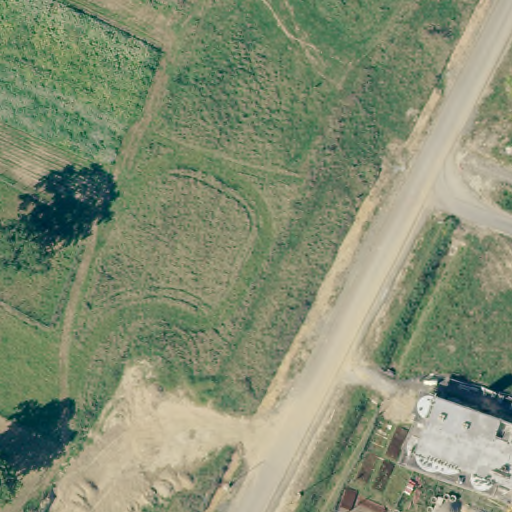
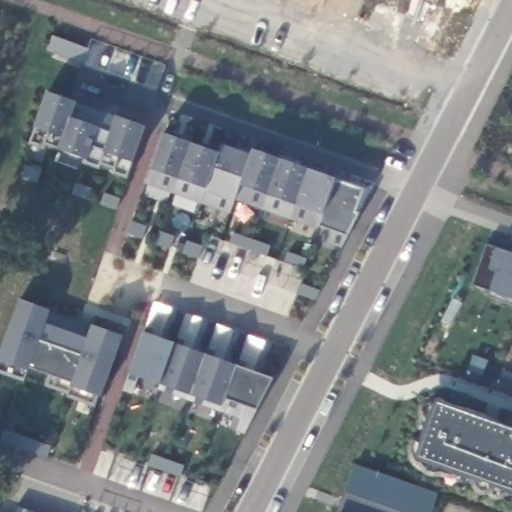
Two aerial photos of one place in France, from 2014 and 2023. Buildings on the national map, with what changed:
new [(52,35),(86,47),(83,57),(81,62),(47,50),(52,35)]
new [(35,128),(49,93),(145,129),(132,163),(125,178),(112,172),(115,168),(101,164),(99,167),(85,160),(57,149),(45,143),(42,148),(30,143),(35,128)]
new [(151,169),(164,134),(220,154),(221,144),(250,156),(252,150),(336,180),(363,190),(355,212),(358,214),(346,236),(341,248),(328,243),(333,232),(318,226),(317,230),(235,200),(230,214),(145,185),(151,169)]
new [(230,234),(268,247),(265,257),(227,244),(230,234)]
new [(186,242),(201,248),(197,260),(182,255),(186,242)]
new [(286,254),(305,260),(301,270),(282,264),(286,254)]
new [(299,285),(318,292),(313,301),(295,295),(299,285)]
new [(19,300),(49,311),(48,313),(92,329),(94,325),(121,336),(100,397),(96,395),(94,406),(66,397),(68,393),(45,386),(49,375),(28,368),(27,371),(24,381),(0,374),(0,356),(19,300)]
new [(274,379),(257,410),(243,433),(236,431),(241,418),(218,411),(221,406),(160,386),(138,377),(132,395),(122,391),(129,372),(144,332),(274,379)]
new [(421,412),(423,407),(426,403),(431,402),(436,403),(437,401),(512,427),(512,492),(508,491),(502,496),(497,497),(493,496),(488,491),(482,492),(478,491),(475,488),(473,484),(475,480),(458,475),(456,481),(426,471),(422,468),(415,461),(412,455),(411,449),(415,439),(423,442),(427,430),(420,427),(422,419),(421,412)]
new [(5,429),(50,446),(46,456),(0,440),(5,429)]
new [(167,460),(182,465),(179,475),(164,470),(167,460)]
new [(438,497),(433,512),(417,512),(346,487),(353,467),(438,497)]

